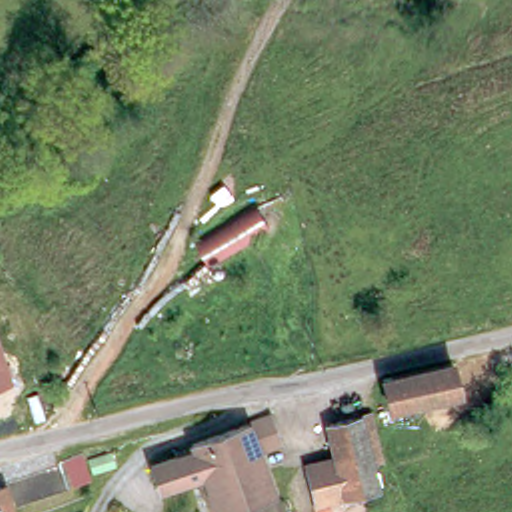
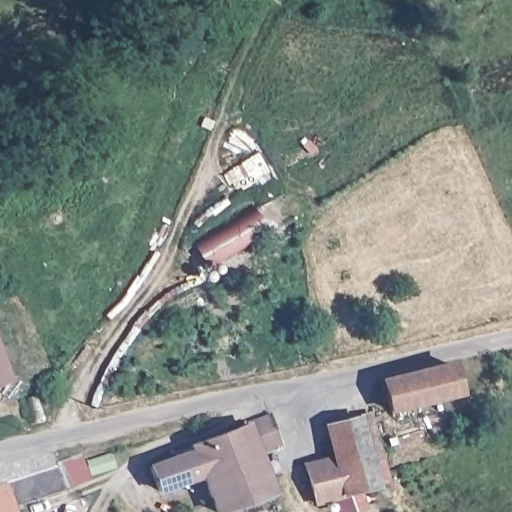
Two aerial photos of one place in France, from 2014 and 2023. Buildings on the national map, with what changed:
unchanged [(268,230),(216,261),(219,272),(202,279),(189,254),(257,207),(268,230)]
unchanged [(12,383),(0,386),(0,343),(12,383)]
unchanged [(380,382),(448,367),(457,396),(387,412),(380,382)]
unchanged [(223,512),(216,512),(211,501),(205,488),(201,479),(155,496),(150,485),(147,472),(187,458),(185,451),(242,427),(262,420),(272,443),(252,452),(270,494),(223,512)]
unchanged [(297,477),(323,466),(317,451),(345,439),(366,431),(377,465),(370,467),(357,470),(365,491),(339,501),(313,511),(307,497),(297,477)]
unchanged [(53,466),(62,488),(15,506),(5,483),(53,466)]
unchanged [(6,512),(0,512),(0,496),(6,512)]

